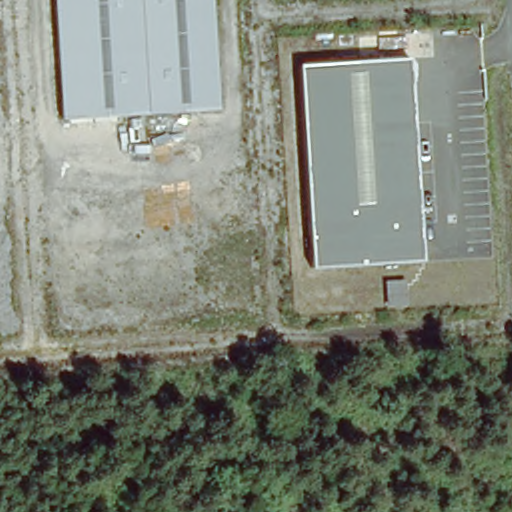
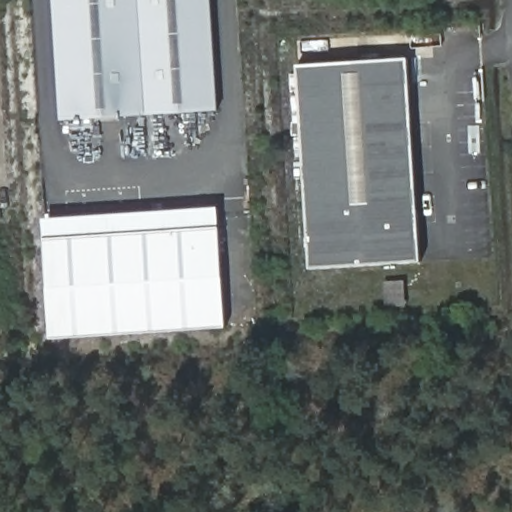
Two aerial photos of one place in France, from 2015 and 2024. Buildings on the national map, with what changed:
unchanged [(216,108),(62,120),(53,0),(210,0),(216,108)]
unchanged [(407,60),(421,263),(312,270),(296,68),(407,60)]
new [(48,341),(42,218),(218,207),(226,326),(48,341)]

